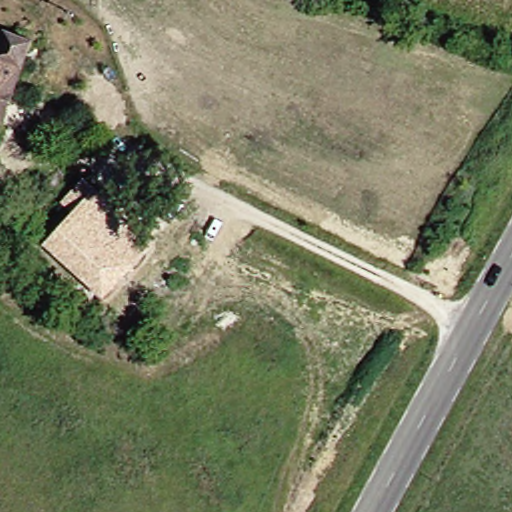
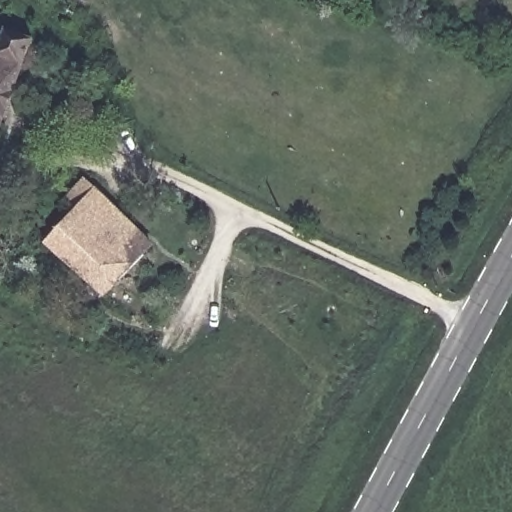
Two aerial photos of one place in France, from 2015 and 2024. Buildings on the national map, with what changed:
unchanged [(0,114),(0,32),(27,43),(0,114)]
unchanged [(78,209),(137,259),(97,303),(38,253),(65,222),(54,212),(74,189),(87,198),(78,209)]
unchanged [(146,249),(137,259),(78,209),(87,198),(146,249)]

